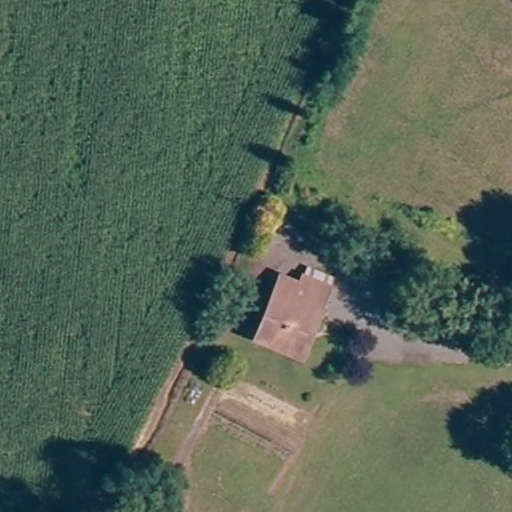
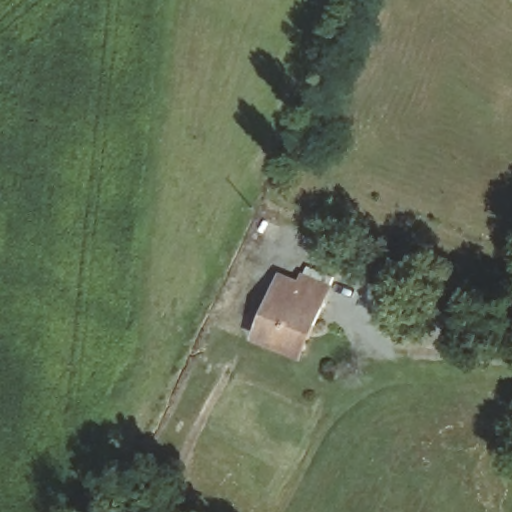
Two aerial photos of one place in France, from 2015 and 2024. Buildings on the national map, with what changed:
unchanged [(278,273),(299,281),(307,268),(334,281),(303,360),(250,342),(278,273)]

